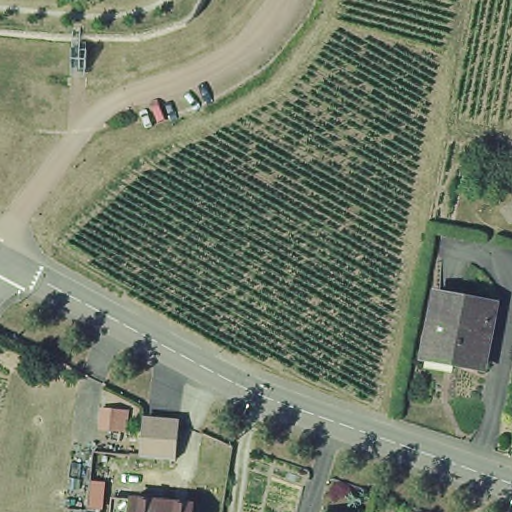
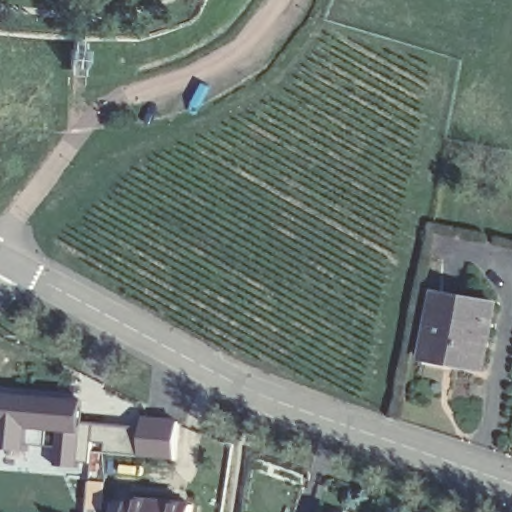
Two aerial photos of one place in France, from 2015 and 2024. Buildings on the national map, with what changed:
unchanged [(412,354),(423,297),(483,307),(475,352),(471,373),(464,372),(442,368),(410,363),(412,354)]
new [(57,432),(48,433),(49,447),(32,445),(32,452),(2,450),(2,427),(0,427),(0,395),(83,400),(81,467),(57,467),(57,432)]
unchanged [(165,460),(130,456),(134,418),(163,421),(168,423),(165,460)]
new [(90,478),(107,480),(102,511),(87,509),(90,478)]
unchanged [(196,512),(116,512),(117,503),(137,506),(137,504),(197,511),(196,512)]

